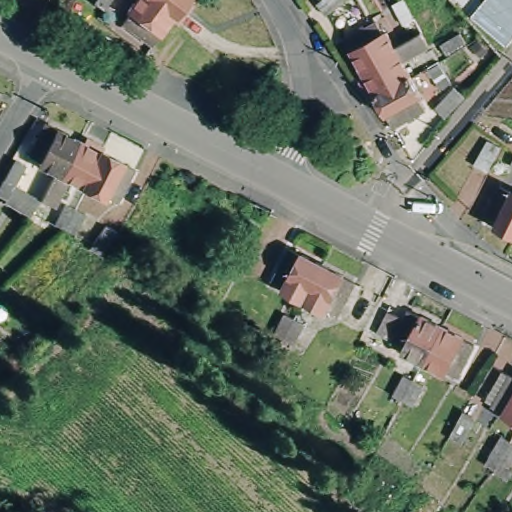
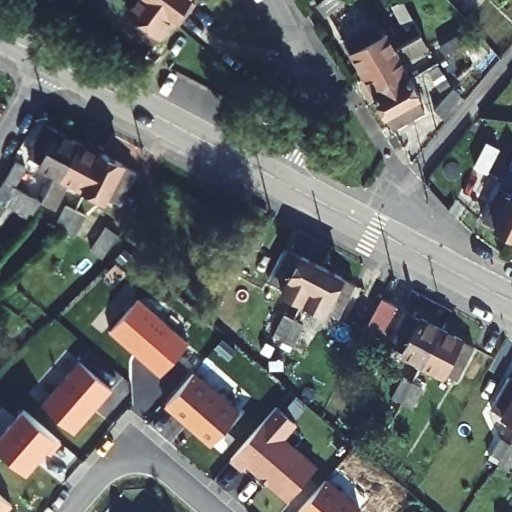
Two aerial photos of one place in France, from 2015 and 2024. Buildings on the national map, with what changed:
unchanged [(45,0),(54,0),(53,1),(52,4),(45,0)]
unchanged [(115,10),(105,3),(107,0),(122,0),(115,10)]
unchanged [(192,21),(188,26),(183,23),(174,38),(170,36),(164,46),(134,23),(142,13),(140,11),(148,0),(165,0),(171,5),(180,12),(183,14),(187,18),(192,21)]
unchanged [(207,3),(205,3),(201,0),(187,18),(183,14),(180,12),(171,5),(165,0),(210,0),(207,3)]
unchanged [(397,58),(360,80),(347,55),(349,53),(342,41),(374,24),(381,36),(384,34),(393,50),(397,58)]
unchanged [(442,48),(462,35),(468,44),(449,57),(442,48)]
unchanged [(405,43),(414,38),(422,52),(401,64),(410,79),(385,92),(372,99),(367,102),(364,96),(368,94),(360,80),(397,58),(393,50),(405,43)]
unchanged [(447,81),(437,88),(425,69),(435,62),(447,81)]
unchanged [(385,92),(410,79),(420,98),(417,100),(424,112),(390,129),(384,118),(382,119),(372,99),(385,92)]
unchanged [(444,121),(432,112),(450,90),(461,100),(444,121)]
unchanged [(45,168),(47,164),(35,157),(50,126),(64,132),(65,131),(85,142),(87,142),(67,179),(60,175),(45,168)]
unchanged [(502,148),(489,173),(476,166),(490,141),(502,148)]
unchanged [(67,179),(87,142),(109,154),(90,191),(74,182),(60,209),(49,204),(48,203),(52,194),(54,191),(60,175),(67,179)]
unchanged [(109,154),(127,163),(127,165),(140,171),(124,204),(114,198),(112,202),(90,191),(109,154)]
unchanged [(37,212),(5,196),(12,181),(22,162),(31,168),(22,186),(47,199),(37,212)]
unchanged [(59,226),(70,206),(80,211),(89,215),(79,236),(66,230),(59,226)]
unchanged [(485,241),(502,209),(512,214),(512,255),(485,241)]
unchanged [(304,303),(275,288),(277,285),(272,282),(289,251),(302,257),(304,255),(323,265),(304,303)]
unchanged [(323,265),(343,275),(342,277),(355,285),(340,317),(334,314),(332,318),(304,303),(323,265)]
new [(189,342),(160,376),(108,331),(140,296),(189,342)]
unchanged [(422,359),(402,349),(404,344),(393,338),(409,306),(424,314),(425,313),(441,321),(422,359)]
unchanged [(400,313),(390,334),(379,328),(389,308),(400,313)]
unchanged [(294,348),(283,342),(273,337),(283,316),(294,322),(304,327),(294,348)]
unchanged [(441,321),(461,331),(460,333),(474,340),(457,372),(445,366),(442,370),(422,359),(441,321)]
new [(112,389),(74,434),(41,405),(80,360),(112,389)]
unchanged [(486,401),(505,368),(512,372),(512,416),(486,401)]
new [(241,409),(212,445),(165,406),(195,370),(241,409)]
unchanged [(413,408),(402,402),(393,398),(402,377),(412,382),(423,388),(413,408)]
new [(299,424),(288,437),(319,465),(287,499),(246,464),(242,470),(230,460),(278,405),(299,424)]
new [(62,441),(52,453),(47,448),(27,473),(0,450),(0,435),(22,409),(57,437),(62,441)]
unchanged [(462,415),(475,422),(461,445),(449,438),(462,415)]
unchanged [(505,468),(497,462),(487,456),(500,436),(509,442),(512,444),(512,458),(505,468)]
new [(355,512),(299,512),(297,511),(329,476),(360,507),(355,512)]
new [(7,512),(0,512),(0,493),(14,505),(7,512)]

